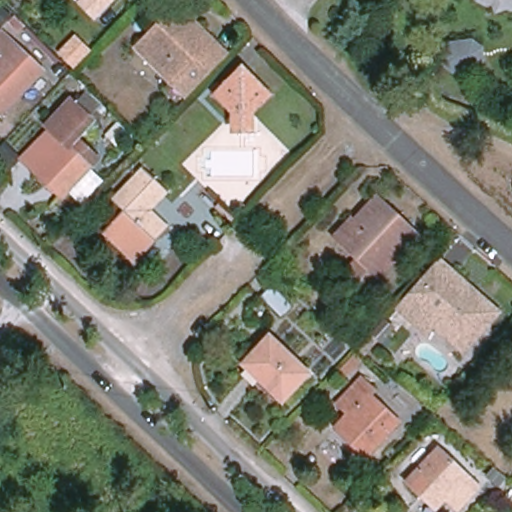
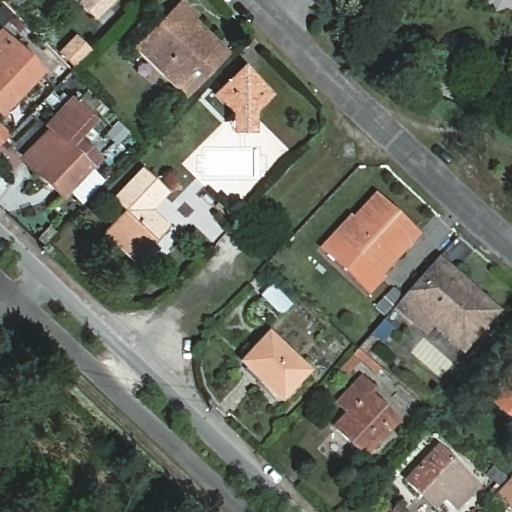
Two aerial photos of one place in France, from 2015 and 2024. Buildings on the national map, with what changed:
unchanged [(3,0),(2,1),(1,0),(3,0)]
unchanged [(76,3),(79,0),(115,0),(94,21),(76,3)]
unchanged [(506,6),(503,4),(500,5),(498,0),(512,0),(512,3),(506,6)]
unchanged [(182,3),(196,16),(193,20),(227,55),(186,96),(138,49),(182,3)]
unchanged [(42,71),(2,114),(0,112),(0,36),(3,33),(42,71)]
unchanged [(74,70),(56,51),(73,34),(91,50),(74,70)]
unchanged [(486,56),(479,66),(455,73),(444,66),(441,53),(450,43),(473,38),(483,45),(486,56)]
unchanged [(234,133),(234,113),(217,96),(244,69),(270,95),(253,113),(254,132),(234,133)]
unchanged [(23,155),(51,126),(46,122),(71,96),(93,117),(76,134),(98,154),(63,192),(23,155)]
unchanged [(63,192),(98,154),(115,170),(114,170),(96,188),(78,207),(63,192)]
unchanged [(165,188),(148,206),(167,223),(137,256),(110,230),(129,208),(116,195),(141,167),(165,188)]
unchanged [(382,280),(371,292),(348,271),(359,261),(335,239),(352,221),(355,223),(367,210),(377,199),(419,238),(412,245),(380,278),(382,280)]
unchanged [(465,356),(435,328),(426,337),(394,306),(440,257),(503,312),(465,356)]
unchanged [(295,308),(284,319),(262,298),(273,287),(295,308)]
unchanged [(308,375),(284,402),(246,365),(270,339),(308,375)]
unchanged [(52,369),(38,383),(21,366),(35,352),(52,369)]
unchanged [(374,392),(369,398),(397,425),(368,457),(337,430),(351,416),(340,405),(362,381),(374,392)]
new [(493,404),(512,382),(512,421),(493,404)]
unchanged [(427,489),(414,478),(443,447),(483,483),(463,504),(452,493),(442,503),(427,489)]
unchanged [(495,468),(506,478),(500,487),(487,476),(495,468)]

